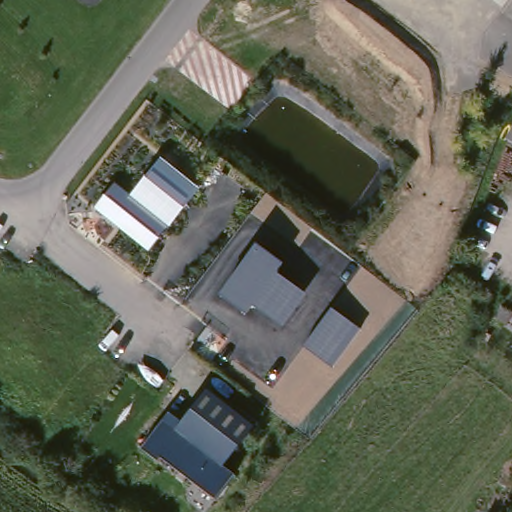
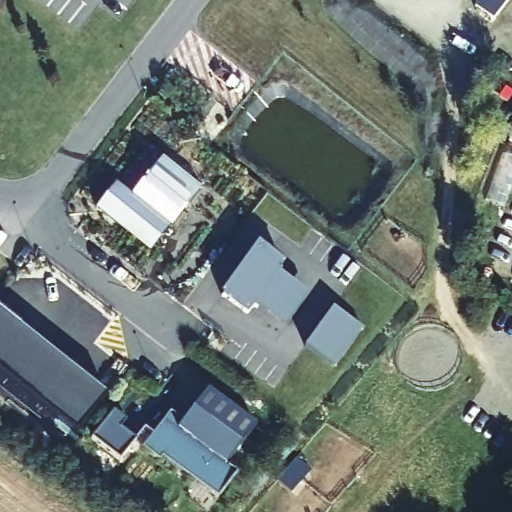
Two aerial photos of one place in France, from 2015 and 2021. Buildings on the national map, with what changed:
new [(481,11),(477,8),(483,0),(511,0),(495,22),(481,11)]
new [(512,157),(512,193),(505,208),(487,201),(506,155),(512,157)]
unchanged [(148,251),(94,209),(115,183),(131,196),(161,157),(201,189),(148,251)]
unchanged [(283,328),(254,306),(247,314),(219,294),(255,243),(283,264),(277,273),(307,296),(283,328)]
unchanged [(333,369),(304,347),(332,307),(361,331),(333,369)]
new [(76,435),(0,377),(0,314),(8,320),(106,396),(76,435)]
unchanged [(258,425),(228,468),(235,474),(215,499),(158,455),(153,460),(140,449),(170,410),(182,419),(207,387),(258,425)]

